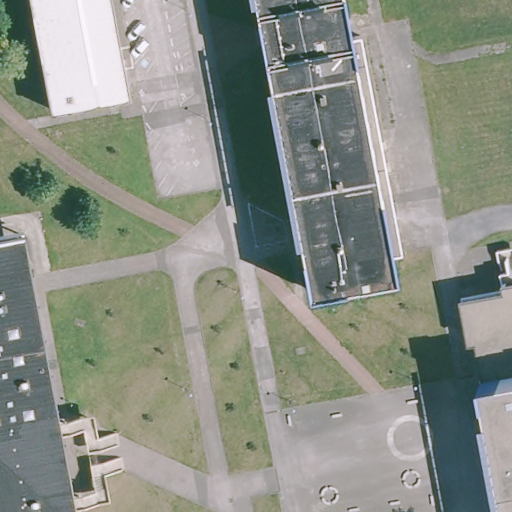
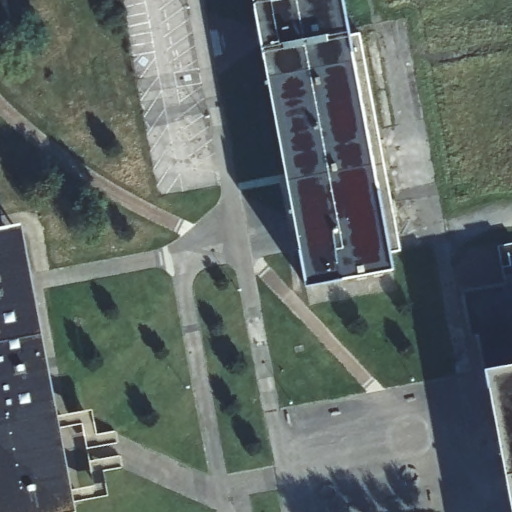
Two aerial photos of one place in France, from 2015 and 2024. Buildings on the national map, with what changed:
demolished [(50,108),(29,0),(69,0),(108,59),(128,88),(128,93),(50,108)]
demolished [(128,88),(108,59),(69,0),(111,0),(118,37),(128,88)]
unchanged [(358,35),(400,250),(391,252),(394,271),(306,287),(251,0),(342,0),(350,37),(358,35)]
unchanged [(25,289),(37,354),(55,452),(63,492),(66,512),(0,512),(0,243),(16,240),(25,289)]
unchanged [(512,292),(512,512),(510,512),(507,492),(495,430),(484,369),(471,299),(512,292)]

